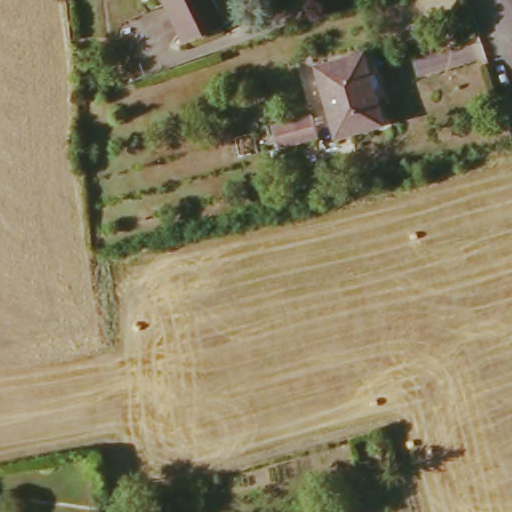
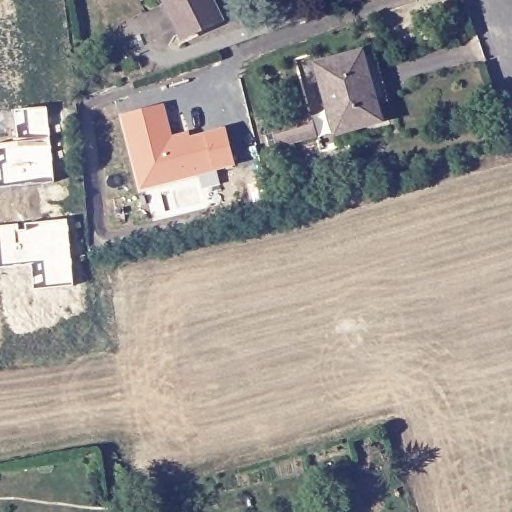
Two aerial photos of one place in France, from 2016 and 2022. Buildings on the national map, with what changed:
unchanged [(221,0),(227,16),(183,36),(168,0),(221,0)]
unchanged [(357,46),(358,51),(366,48),(385,98),(381,99),(386,115),(337,132),(312,63),(357,46)]
new [(163,135),(182,131),(183,136),(219,127),(227,159),(135,183),(117,111),(155,101),(163,135)]
new [(0,187),(0,143),(15,142),(12,110),(45,108),(50,183),(0,187)]
unchanged [(273,131),(310,119),(317,139),(282,150),(273,131)]
new [(15,224),(15,229),(22,229),(22,223),(64,219),(70,285),(30,289),(28,264),(0,267),(0,225),(15,224)]

